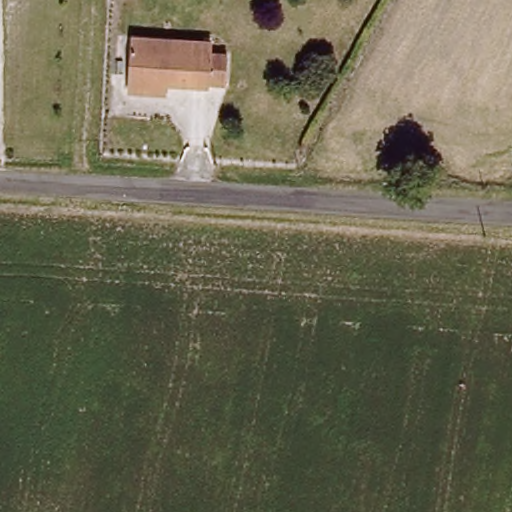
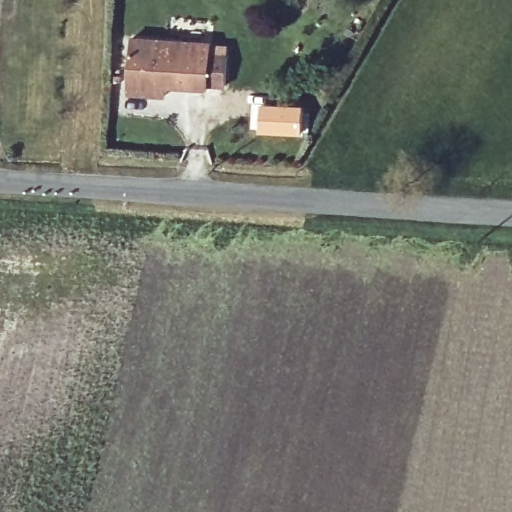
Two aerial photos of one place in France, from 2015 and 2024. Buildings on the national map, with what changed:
unchanged [(128,41),(205,43),(205,52),(222,53),(221,83),(205,83),(205,87),(161,86),(161,98),(126,97),(126,85),(128,41)]
new [(251,96),(262,97),(262,102),(305,104),(302,134),(249,130),(251,96)]

